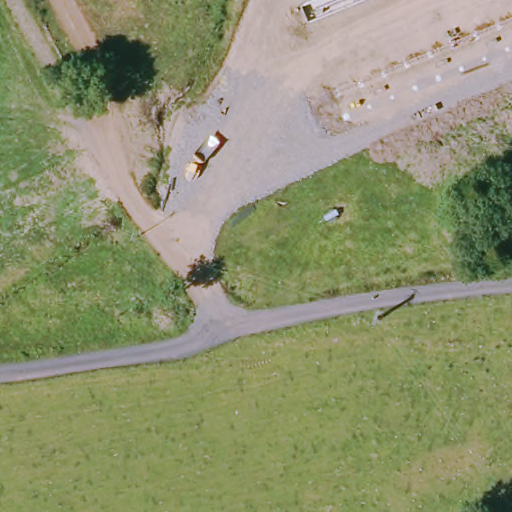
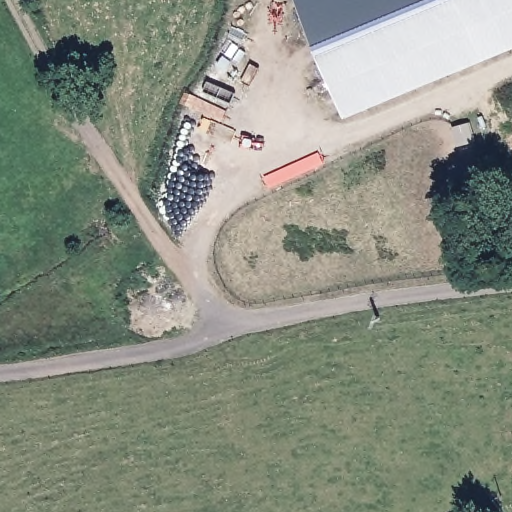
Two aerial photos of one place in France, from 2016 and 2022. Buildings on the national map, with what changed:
new [(299,0),(512,0),(512,47),(346,117),(299,0)]

